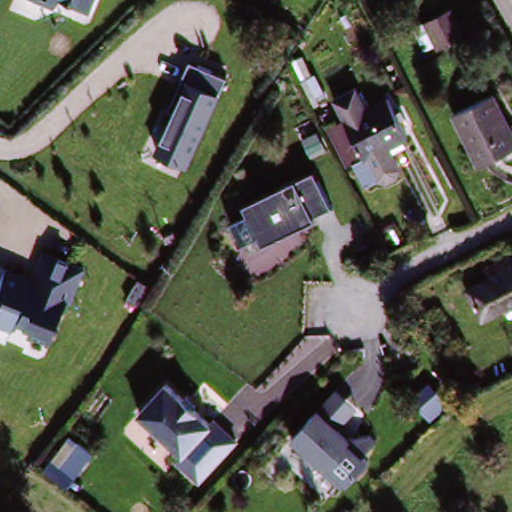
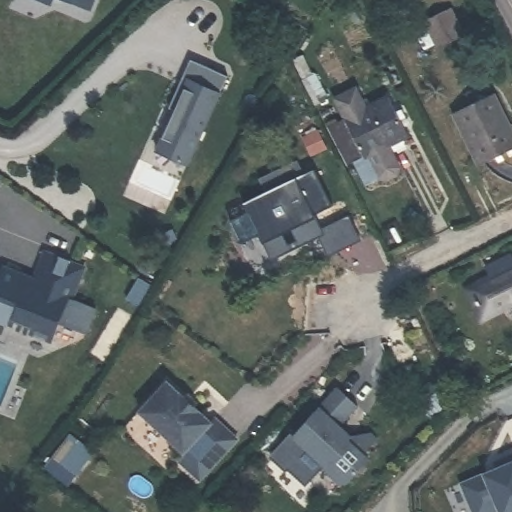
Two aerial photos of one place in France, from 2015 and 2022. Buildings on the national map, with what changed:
unchanged [(38,0),(53,0),(51,5),(38,0)]
unchanged [(67,0),(94,0),(90,9),(67,0)]
unchanged [(471,37),(422,63),(404,27),(452,8),(471,37)]
unchanged [(229,77),(190,167),(152,151),(162,128),(160,127),(189,58),(229,77)]
unchanged [(331,126),(350,120),(344,95),(365,91),(370,112),(394,106),(397,121),(405,120),(407,126),(400,128),(405,145),(385,150),(395,177),(382,187),(372,183),(360,187),(352,161),(344,164),(331,126)]
unchanged [(462,111),(499,99),(512,138),(512,158),(482,168),(462,111)]
unchanged [(262,246),(244,208),(315,174),(320,184),(332,210),(314,219),(315,222),(262,246)]
unchanged [(72,304),(67,302),(54,342),(30,335),(32,330),(15,323),(12,328),(0,323),(0,275),(4,263),(35,274),(44,248),(56,253),(57,256),(85,266),(72,304)]
unchanged [(471,291),(496,279),(490,266),(512,256),(512,304),(485,317),(471,291)]
unchanged [(185,457),(142,416),(169,387),(212,428),(185,457)]
unchanged [(342,489),(329,476),(329,470),(295,438),(322,409),(340,390),(360,410),(341,429),(352,439),(373,437),(380,443),(367,459),(372,464),(350,488),(342,489)]
unchanged [(215,416),(240,438),(200,481),(170,455),(175,447),(185,457),(212,428),(209,424),(215,416)]
unchanged [(94,453),(69,487),(44,468),(70,434),(94,453)]
new [(496,509),(490,512),(471,512),(459,484),(481,473),(495,467),(492,461),(512,453),(512,512),(497,512),(496,509)]

